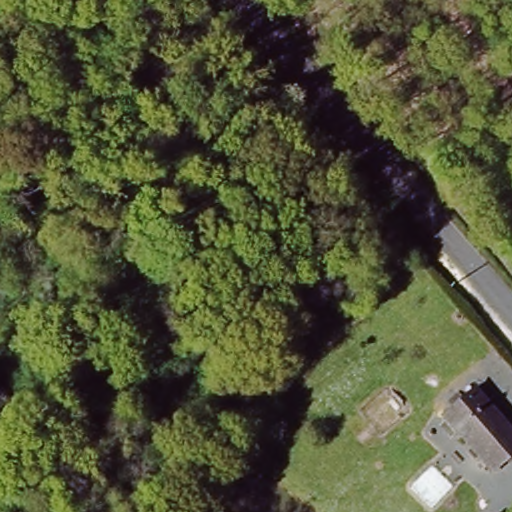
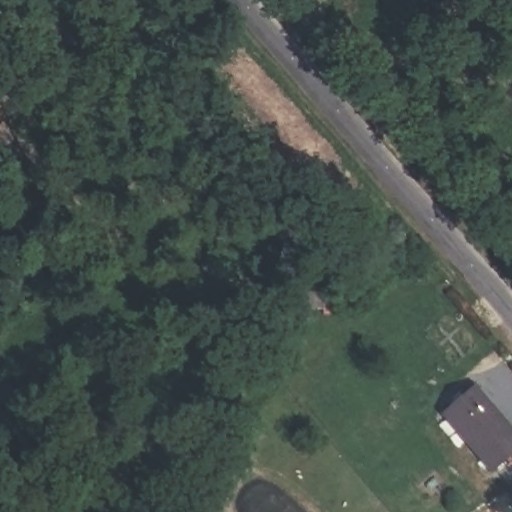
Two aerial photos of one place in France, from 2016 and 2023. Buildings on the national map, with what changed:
unchanged [(476,392),(512,437),(512,449),(489,468),(446,416),(476,392)]

